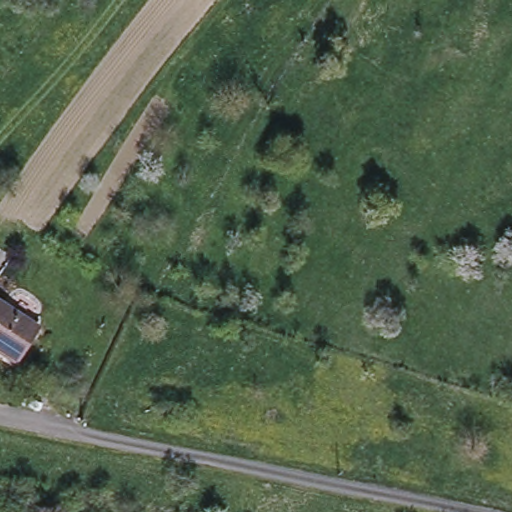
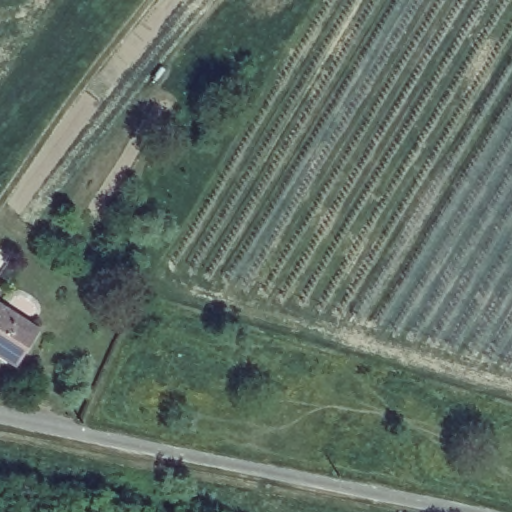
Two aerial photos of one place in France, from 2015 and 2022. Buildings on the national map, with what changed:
unchanged [(19,356),(0,345),(0,303),(37,327),(19,356)]

